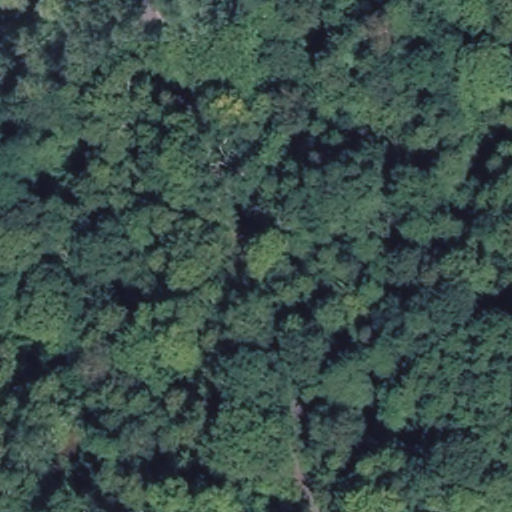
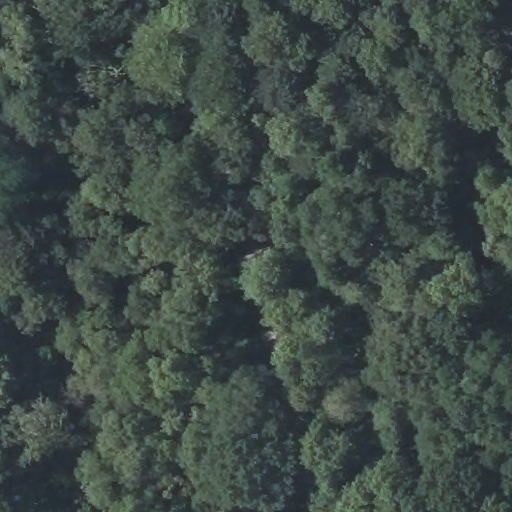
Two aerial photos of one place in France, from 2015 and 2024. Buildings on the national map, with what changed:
unchanged [(35,385),(0,366),(0,347),(14,325),(60,352),(35,385)]

